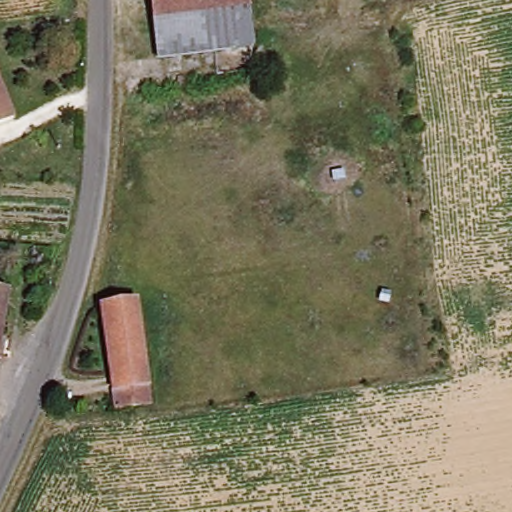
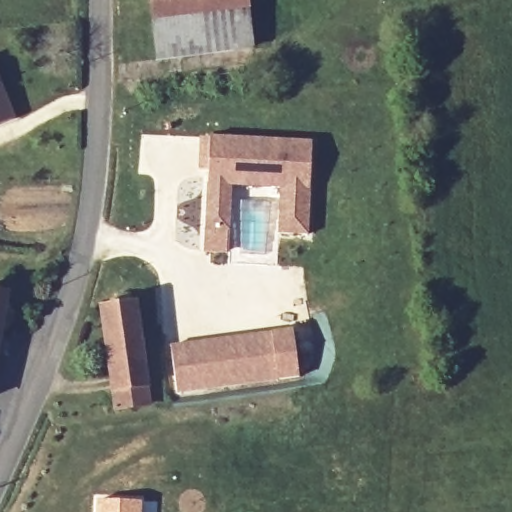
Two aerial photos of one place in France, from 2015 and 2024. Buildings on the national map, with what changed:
unchanged [(244,0),(245,13),(149,21),(147,0),(244,0)]
unchanged [(149,21),(245,13),(249,51),(152,60),(149,21)]
unchanged [(15,117),(0,125),(0,92),(15,117)]
new [(210,136),(312,141),(308,232),(279,232),(280,187),(232,186),(230,230),(205,228),(210,136)]
unchanged [(11,298),(0,346),(0,296),(11,298)]
unchanged [(140,405),(107,407),(104,308),(136,306),(140,405)]
new [(171,344),(292,328),(301,374),(177,391),(171,344)]
new [(98,499),(157,501),(156,512),(96,512),(98,499)]

